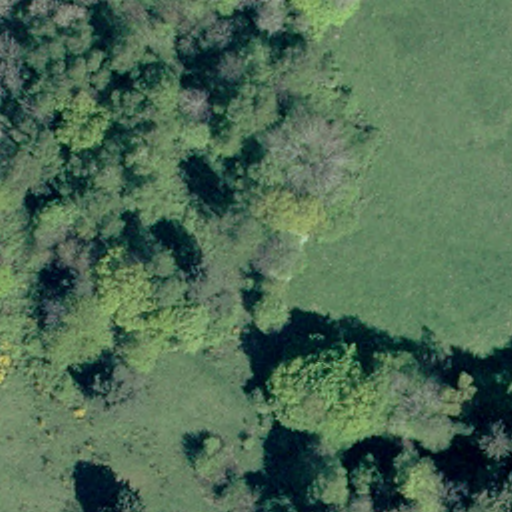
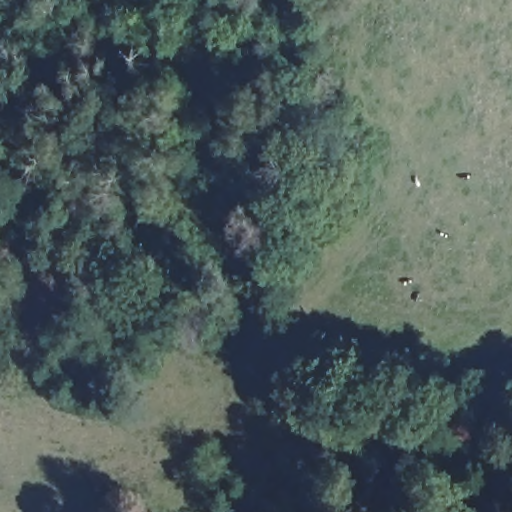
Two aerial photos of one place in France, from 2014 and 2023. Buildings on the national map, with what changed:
[]

